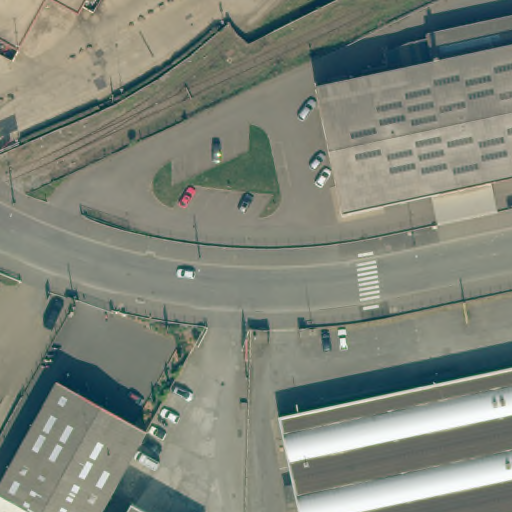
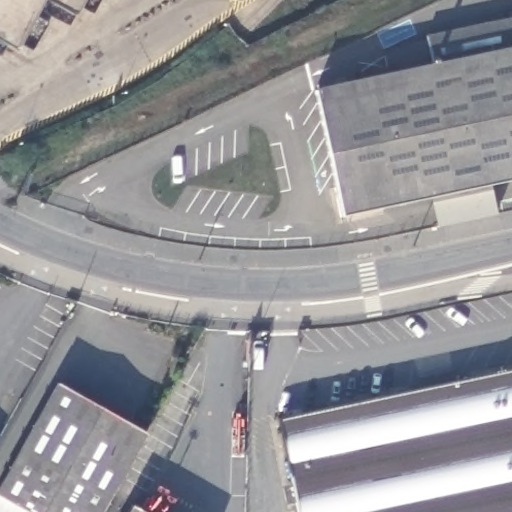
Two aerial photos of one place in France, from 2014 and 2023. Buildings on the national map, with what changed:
unchanged [(342,214),(315,89),(402,71),(400,61),(384,65),(382,54),(411,42),(428,39),(427,35),(512,17),(512,178),(491,182),(433,195),(342,214)]
unchanged [(439,225),(433,195),(491,182),(497,212),(439,225)]
unchanged [(512,367),(512,512),(297,512),(277,417),(512,367)]
unchanged [(26,512),(0,498),(0,485),(56,384),(144,432),(99,512),(26,512)]
unchanged [(0,512),(0,498),(26,512),(0,512)]
unchanged [(145,512),(125,512),(129,503),(145,512)]

